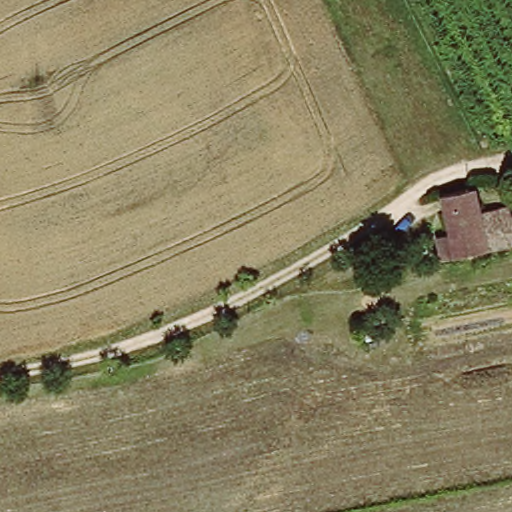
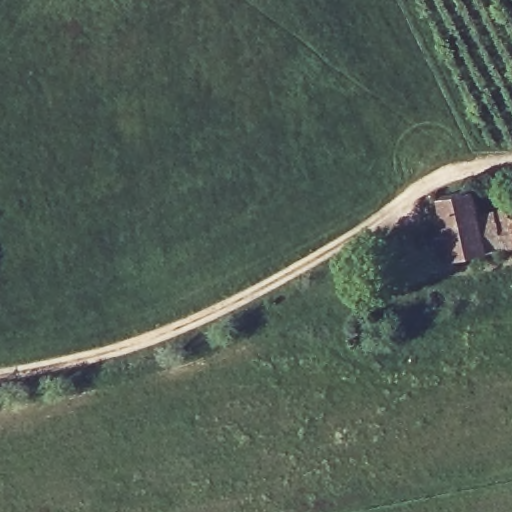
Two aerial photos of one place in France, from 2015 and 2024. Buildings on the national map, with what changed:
unchanged [(452,235),(445,195),(480,191),(482,206),(500,206),(506,205),(508,217),(512,217),(512,245),(507,245),(456,254),(438,257),(434,237),(452,235)]

